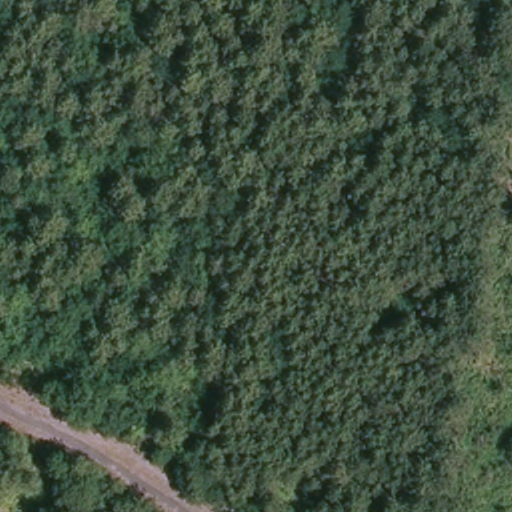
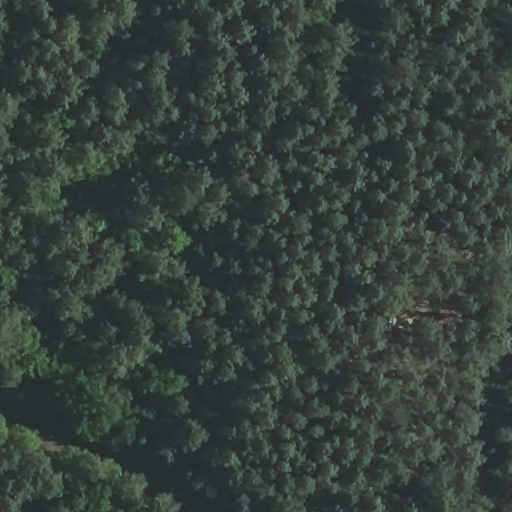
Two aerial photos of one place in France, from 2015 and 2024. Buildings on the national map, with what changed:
[]

